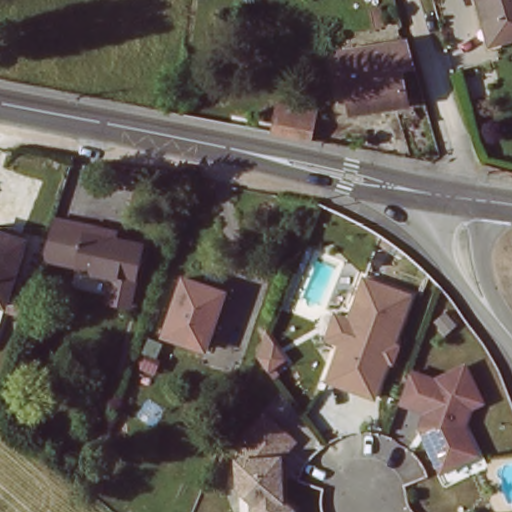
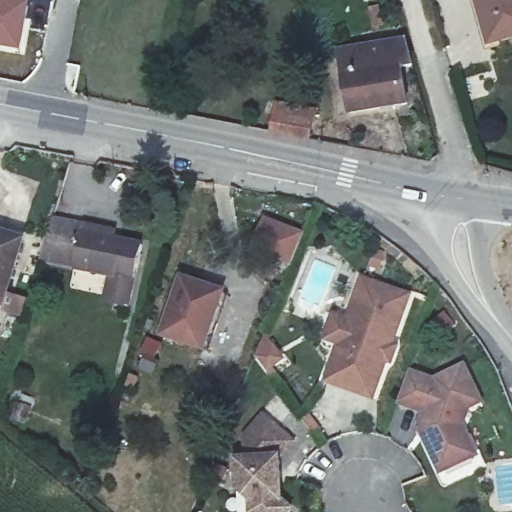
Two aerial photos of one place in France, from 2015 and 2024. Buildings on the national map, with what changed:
new [(29,2),(21,52),(0,48),(0,0),(16,0),(29,2)]
unchanged [(483,26),(475,0),(512,0),(512,44),(496,49),(489,25),(483,26)]
unchanged [(339,72),(336,45),(404,35),(412,61),(394,64),(339,72)]
unchanged [(402,102),(346,113),(339,72),(394,64),(402,102)]
unchanged [(267,135),(271,115),(286,117),(314,122),(311,142),(267,135)]
unchanged [(53,214),(145,233),(131,311),(100,305),(104,278),(73,272),(40,262),(53,214)]
new [(304,232),(291,266),(251,252),(264,217),(304,232)]
unchanged [(0,235),(21,242),(0,307),(0,235)]
unchanged [(223,293),(202,351),(161,337),(183,278),(223,293)]
unchanged [(418,299),(381,402),(334,385),(347,348),(333,342),(341,318),(356,323),(371,282),(418,299)]
unchanged [(443,386),(444,382),(472,370),(488,406),(476,412),(469,430),(483,460),(447,476),(427,432),(433,416),(406,406),(414,381),(417,376),(443,386)]
unchanged [(243,462),(253,462),(252,438),(270,418),(299,445),(286,461),(288,503),(297,512),(246,512),(245,492),(243,462)]

